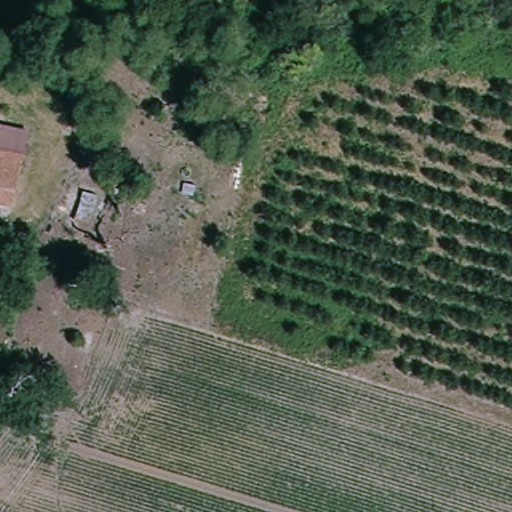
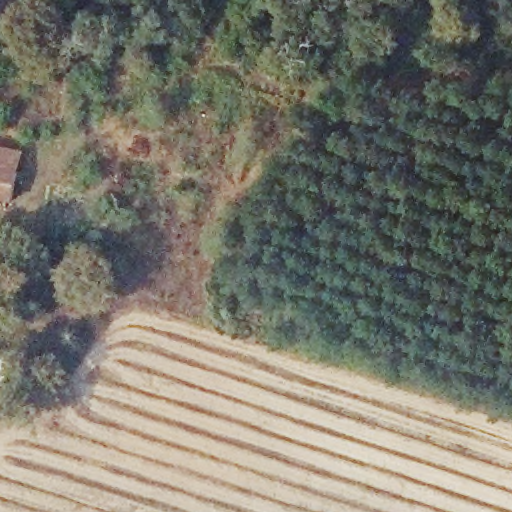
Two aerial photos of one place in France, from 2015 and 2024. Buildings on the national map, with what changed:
unchanged [(22,192),(0,190),(0,140),(25,140),(22,192)]

